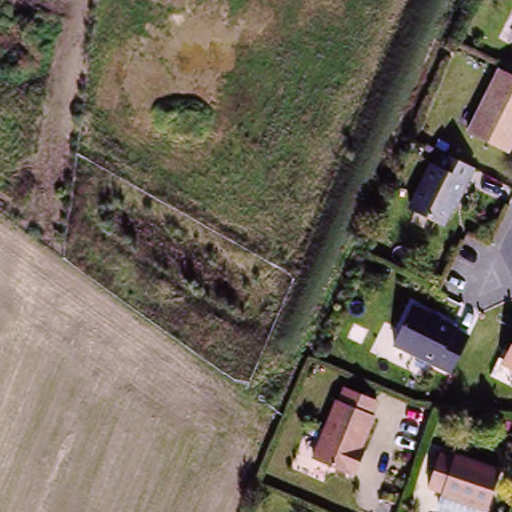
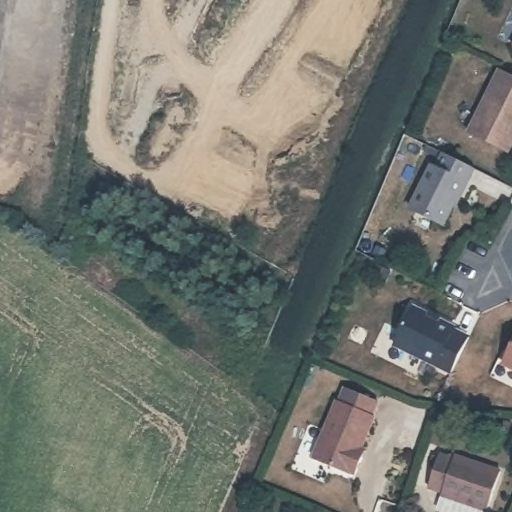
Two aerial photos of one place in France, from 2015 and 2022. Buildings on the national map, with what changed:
unchanged [(472,135),(502,74),(512,79),(512,152),(511,154),(508,152),(472,135)]
unchanged [(455,209),(447,225),(413,209),(433,165),(439,168),(446,154),(478,168),(463,199),(458,210),(455,209)]
unchanged [(456,328),(455,331),(468,338),(457,362),(452,372),(394,345),(412,307),(456,328)]
unchanged [(512,351),(512,369),(505,366),(512,351)]
unchanged [(379,415),(367,447),(369,448),(360,472),(355,470),(354,473),(317,458),(340,400),(343,400),(348,387),(384,401),(379,415)]
unchanged [(458,425),(445,423),(446,415),(459,416),(458,425)]
unchanged [(489,512),(481,512),(449,500),(450,498),(451,495),(436,490),(441,475),(447,459),(462,465),(463,461),(502,475),(489,512)]
unchanged [(406,483),(399,480),(403,468),(410,470),(406,483)]

